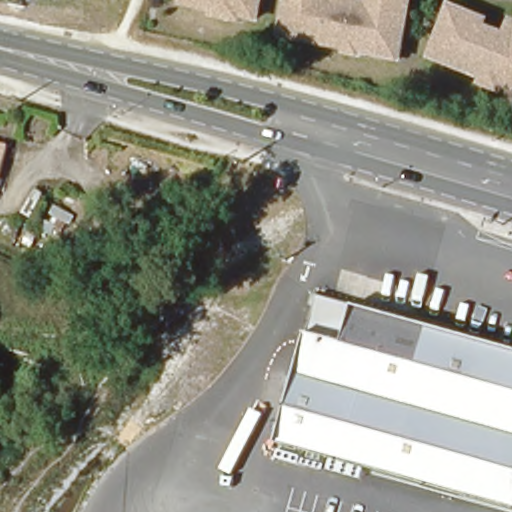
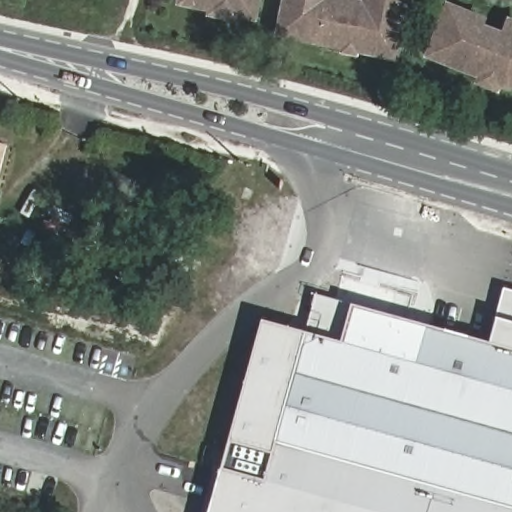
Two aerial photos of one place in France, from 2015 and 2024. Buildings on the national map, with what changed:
unchanged [(247,14),(232,11),(233,6),(208,1),(207,7),(176,1),(176,0),(250,0),(247,14)]
unchanged [(287,0),(329,0),(328,6),(310,2),(309,8),(380,21),(381,16),(364,12),(367,0),(398,0),(397,2),(407,5),(399,51),(389,49),(386,62),(356,56),(357,50),(347,48),(346,54),(289,44),(292,32),(281,30),(287,0)]
unchanged [(461,14),(485,25),(480,38),(512,51),(512,90),(505,91),(430,60),(447,17),(458,21),(461,14)]
unchanged [(5,152),(0,170),(0,150),(5,152)]
new [(498,318),(506,288),(512,290),(512,352),(489,346),(498,318)]
unchanged [(305,332),(314,296),(408,323),(489,346),(512,352),(512,510),(272,444),(304,336),(305,332)]
new [(305,332),(304,336),(272,444),(512,510),(512,512),(208,512),(262,321),(305,332)]

